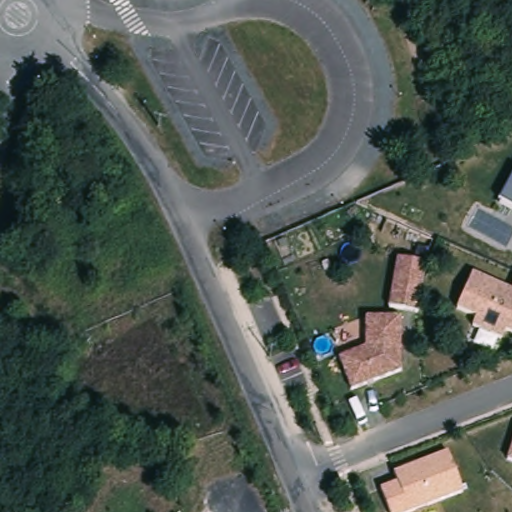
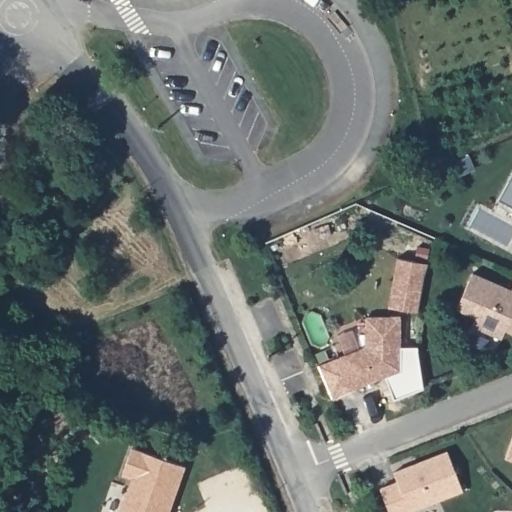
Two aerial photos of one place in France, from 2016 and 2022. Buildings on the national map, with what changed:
unchanged [(497,202),(512,176),(512,210),(497,202)]
unchanged [(425,260),(416,309),(387,305),(395,254),(425,260)]
unchanged [(510,287),(512,282),(512,333),(500,328),(497,337),(468,328),(473,315),(458,308),(472,271),(510,287)]
unchanged [(402,365),(350,386),(337,354),(365,345),(363,315),(400,315),(402,365)]
unchanged [(507,457),(512,441),(512,459),(507,457)]
new [(130,477),(120,475),(130,445),(186,465),(169,512),(119,512),(130,477)]
unchanged [(461,489),(406,512),(390,512),(377,485),(395,477),(392,469),(445,450),(461,489)]

